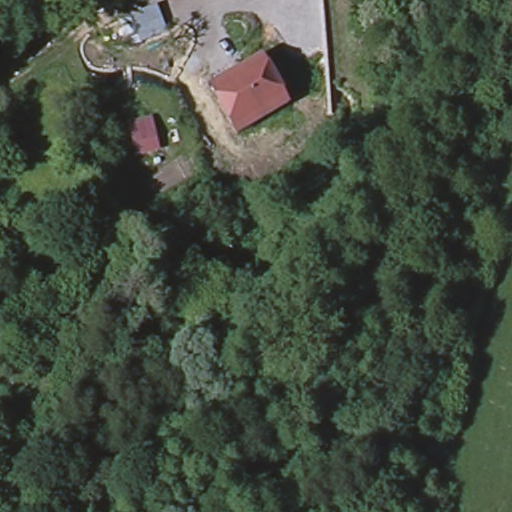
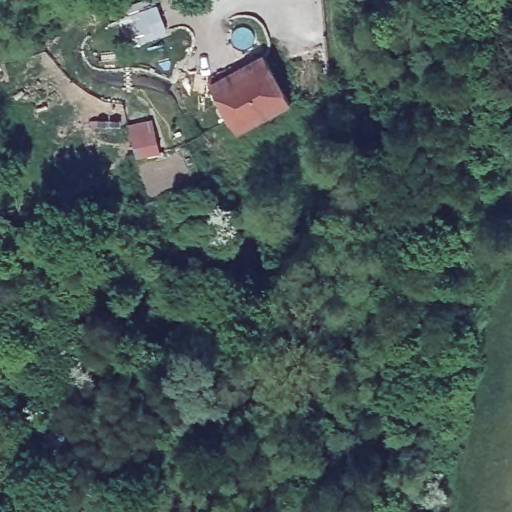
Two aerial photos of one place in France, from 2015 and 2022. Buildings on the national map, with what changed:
unchanged [(213,90),(266,60),(292,105),(240,136),(223,107),(213,90)]
unchanged [(150,119),(157,147),(133,152),(127,124),(150,119)]

